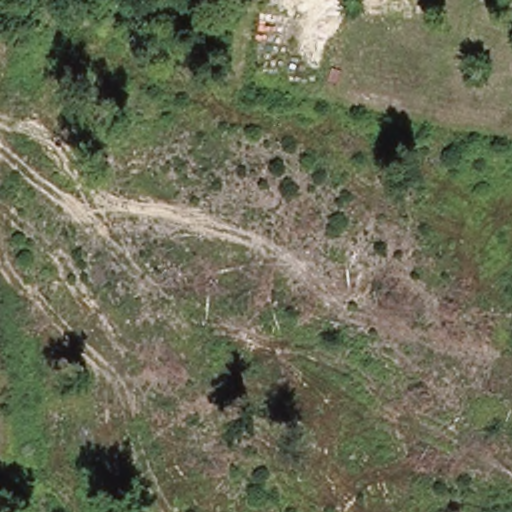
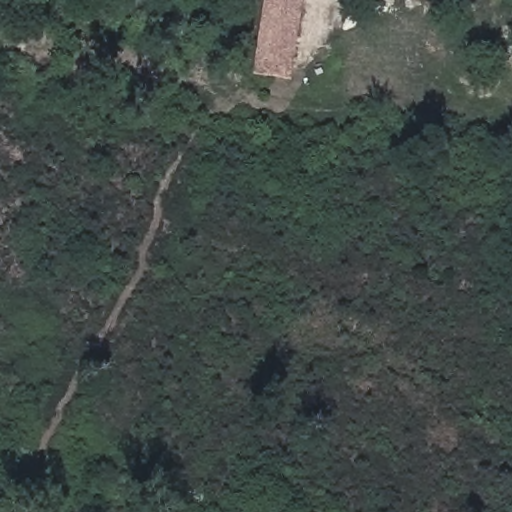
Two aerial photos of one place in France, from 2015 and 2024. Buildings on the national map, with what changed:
new [(288,81),(249,75),(261,0),(300,0),(288,81)]

